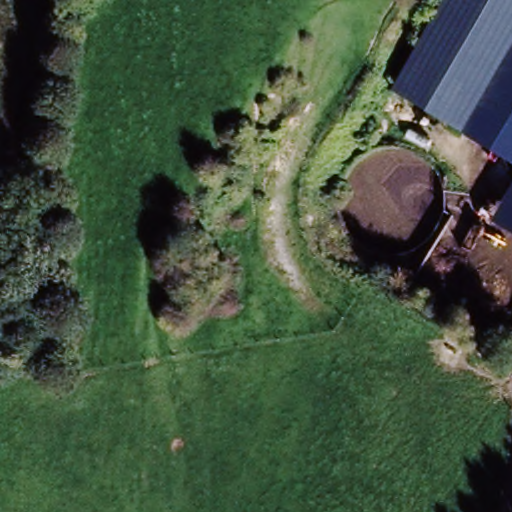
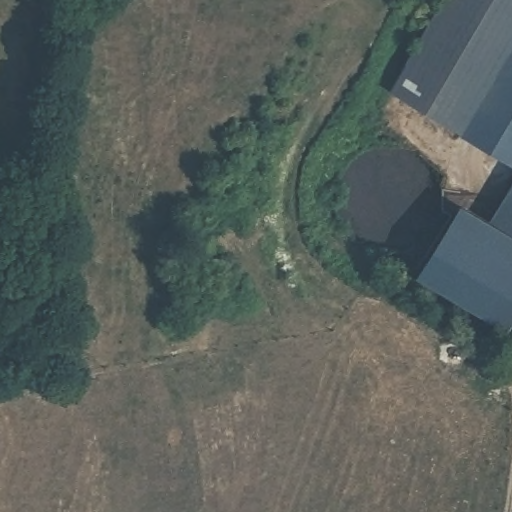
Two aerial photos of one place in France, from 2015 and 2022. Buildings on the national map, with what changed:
unchanged [(385,89),(438,0),(512,0),(512,42),(460,130),(385,89)]
unchanged [(512,42),(512,134),(473,109),(512,42)]
new [(460,130),(473,109),(512,134),(512,164),(459,133),(460,130)]
unchanged [(512,187),(512,238),(490,225),(512,187)]
new [(490,225),(512,238),(512,323),(507,332),(417,277),(460,206),(492,221),(490,225)]

